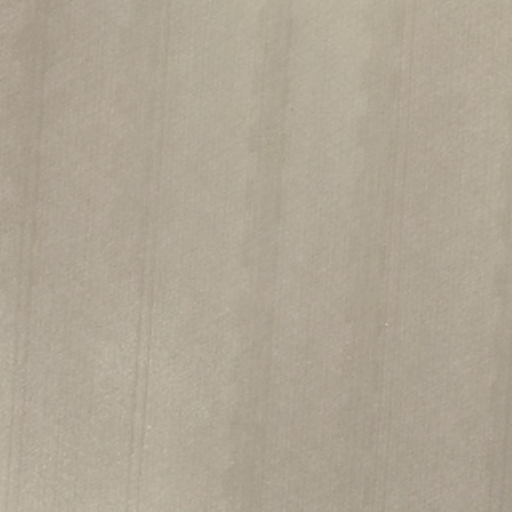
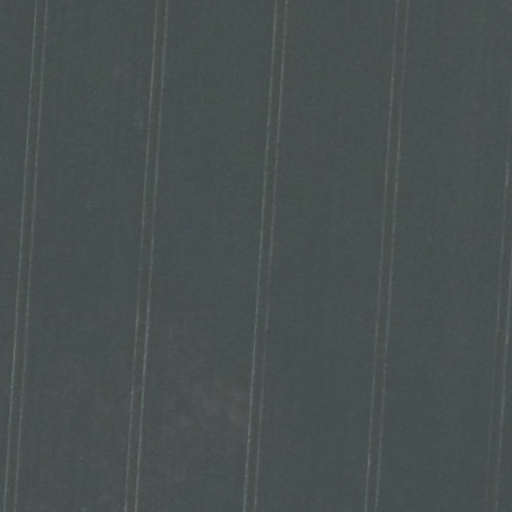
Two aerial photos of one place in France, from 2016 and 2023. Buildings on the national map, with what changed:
[]

